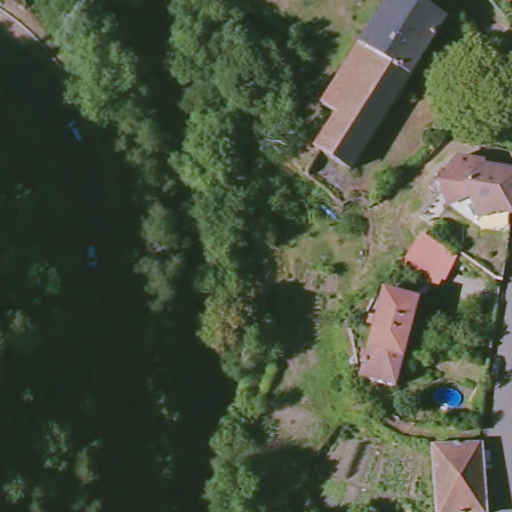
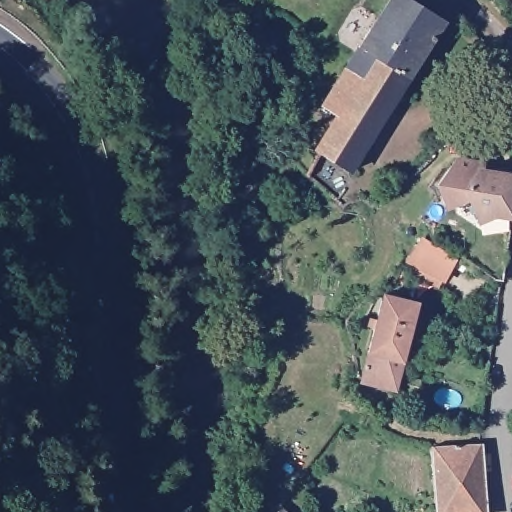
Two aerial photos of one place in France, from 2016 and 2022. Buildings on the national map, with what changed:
unchanged [(407,1),(442,23),(326,199),(299,179),(312,156),(306,152),(329,116),(316,107),(388,1),(389,0),(404,0),(406,1),(407,1)]
unchanged [(440,175),(449,165),(454,160),(479,165),(479,172),(512,180),(504,223),(488,215),(469,223),(463,204),(434,197),(434,195),(431,185),(440,175)]
unchanged [(416,244),(449,265),(436,285),(398,263),(416,244)]
unchanged [(373,299),(408,307),(383,395),(349,386),(373,299)]
unchanged [(482,512),(435,512),(435,449),(477,452),(482,512)]

